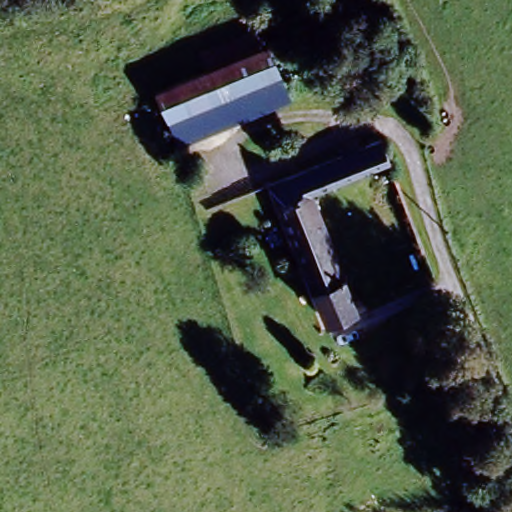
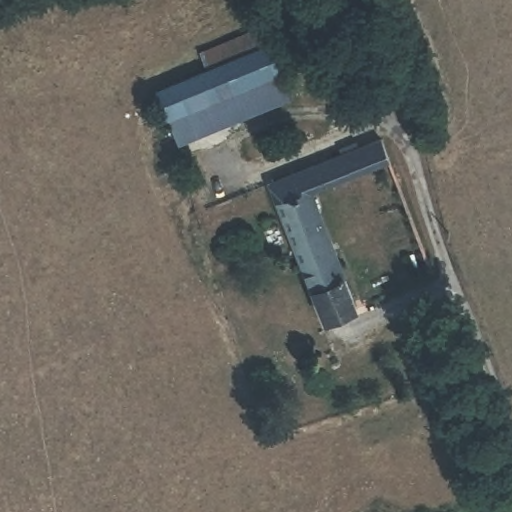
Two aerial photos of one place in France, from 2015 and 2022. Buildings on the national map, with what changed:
unchanged [(292,101),(181,151),(150,93),(202,71),(194,53),(254,25),(292,101)]
unchanged [(313,185),(327,251),(301,261),(281,176),(371,146),(378,166),(313,185)]
unchanged [(327,251),(342,324),(317,328),(301,261),(327,251)]

